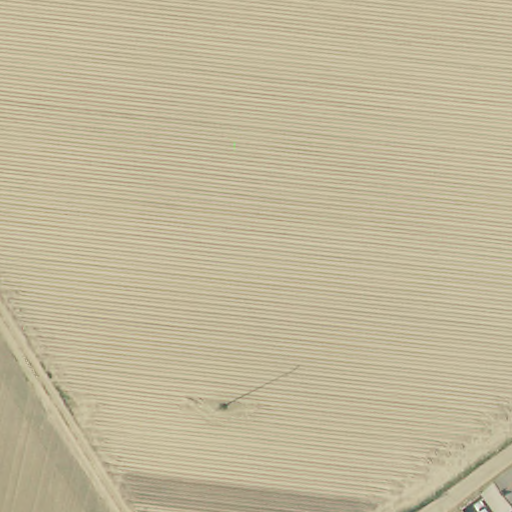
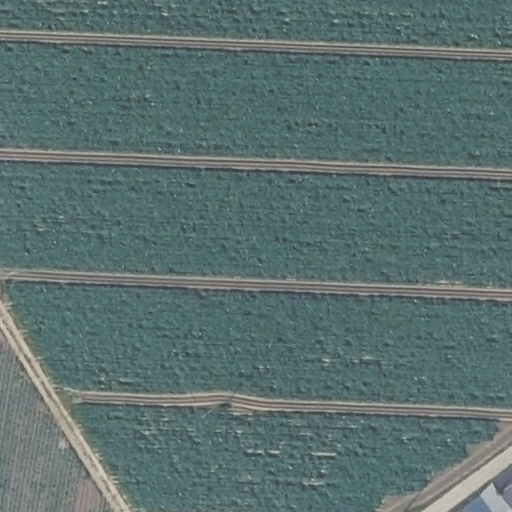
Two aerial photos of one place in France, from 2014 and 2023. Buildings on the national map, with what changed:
unchanged [(512,471),(512,512),(460,512),(497,485),(512,471)]

